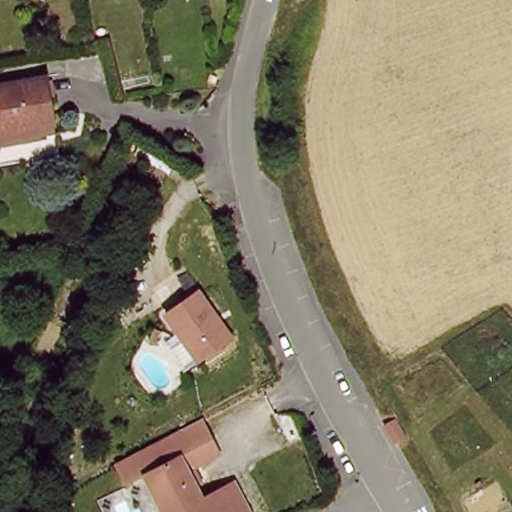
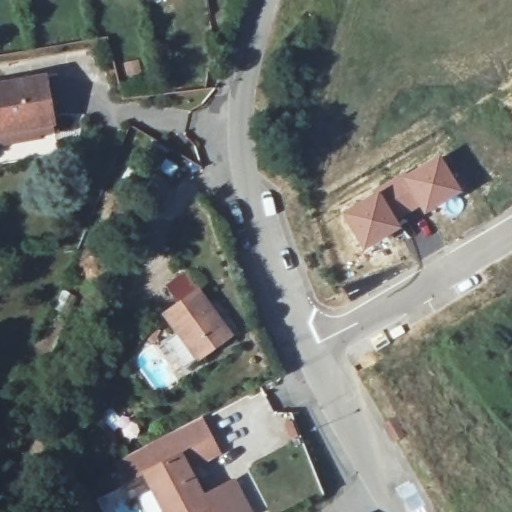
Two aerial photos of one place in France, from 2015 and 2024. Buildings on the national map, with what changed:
unchanged [(46,79),(55,127),(0,138),(0,88),(46,79)]
new [(439,153),(461,190),(423,214),(418,207),(397,221),(377,189),(439,153)]
new [(377,189),(397,221),(401,226),(362,251),(338,213),(377,189)]
unchanged [(203,295),(235,340),(202,363),(170,318),(203,295)]
unchanged [(222,456),(191,472),(205,500),(236,484),(250,512),(167,512),(149,477),(131,485),(121,465),(205,423),(222,456)]

